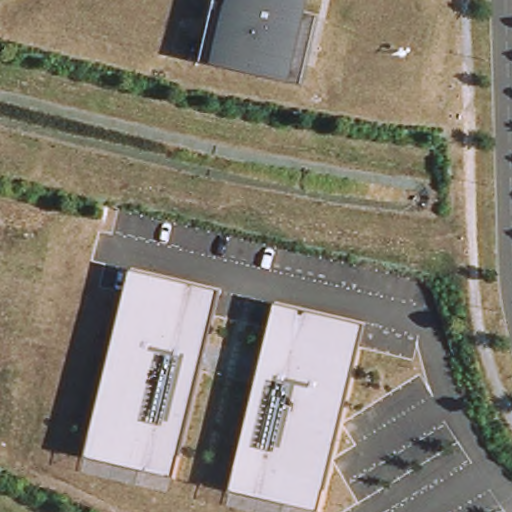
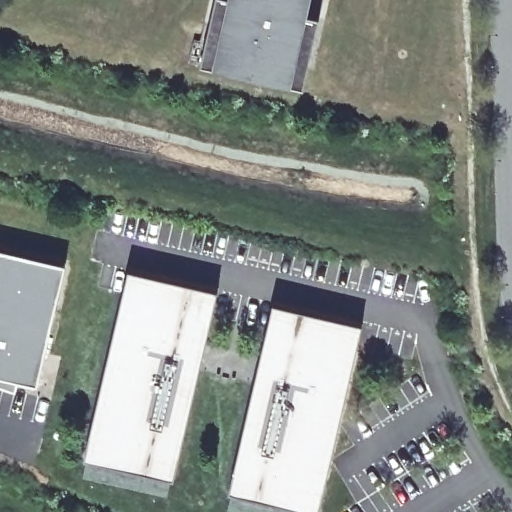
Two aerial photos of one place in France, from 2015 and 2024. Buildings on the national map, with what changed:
unchanged [(199,63),(213,0),(299,0),(297,11),(318,16),(302,86),(199,63)]
new [(39,383),(0,374),(0,248),(66,264),(39,383)]
unchanged [(129,265),(219,286),(175,476),(86,456),(129,265)]
unchanged [(274,299),(363,321),(319,509),(232,487),(274,299)]

